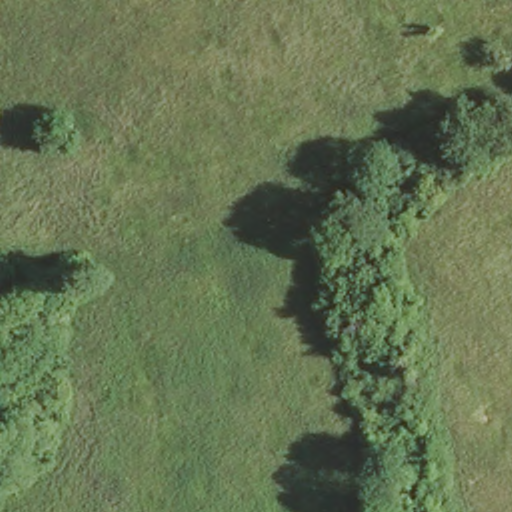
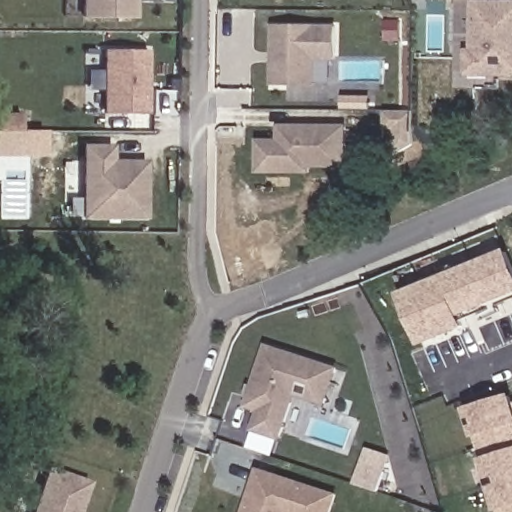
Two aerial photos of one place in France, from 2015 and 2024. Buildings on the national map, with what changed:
new [(80,0),(138,0),(137,19),(80,18),(80,0)]
new [(466,49),(473,49),(474,0),(512,0),(512,76),(466,75),(466,49)]
new [(336,25),(336,60),(316,60),(316,86),(272,86),(272,24),(336,25)]
new [(102,114),(103,50),(150,50),(149,114),(102,114)]
new [(20,115),(19,131),(0,131),(0,114),(20,115)]
new [(311,167),(311,174),(257,172),(257,139),(277,139),(277,124),(347,124),(346,168),(311,167)]
new [(82,220),(82,144),(114,145),(114,160),(147,160),(147,220),(82,220)]
new [(512,259),(512,295),(461,316),(466,327),(422,345),(400,292),(507,249),(512,259)]
new [(324,405),(295,395),(280,440),(251,430),(257,411),(245,406),(266,343),(337,366),(324,405)]
new [(512,395),(512,512),(497,512),(497,508),(497,506),(482,458),(482,461),(473,434),(474,432),(467,407),(512,393),(512,395)]
new [(366,447),(390,455),(377,491),(353,483),(366,447)]
new [(47,465),(92,481),(82,512),(31,512),(47,465)]
new [(257,466),(337,492),(331,512),(241,512),(257,466)]

